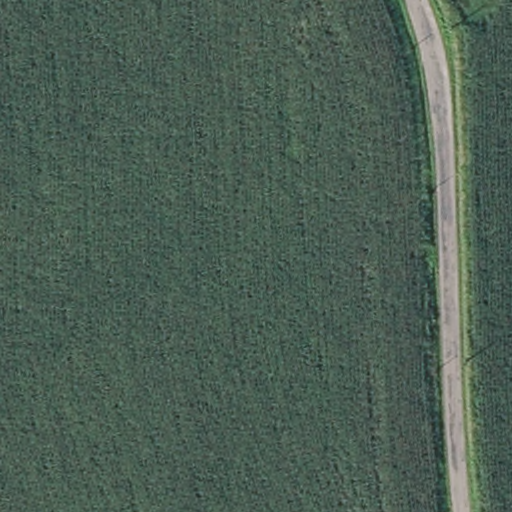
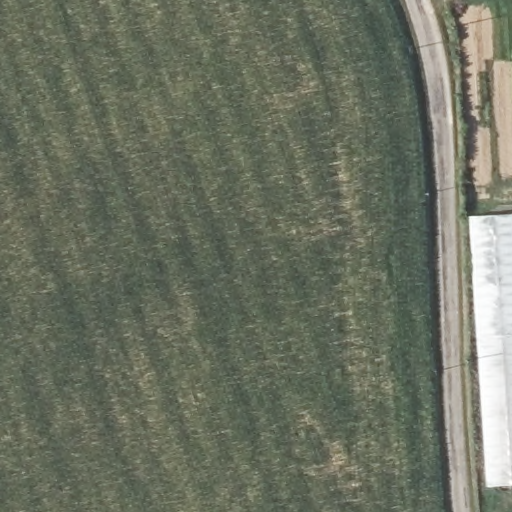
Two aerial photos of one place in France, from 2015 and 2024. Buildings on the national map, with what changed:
new [(469,216),(512,213),(512,334),(479,336),(476,336),(469,216)]
new [(479,336),(512,334),(512,484),(490,486),(479,336)]

